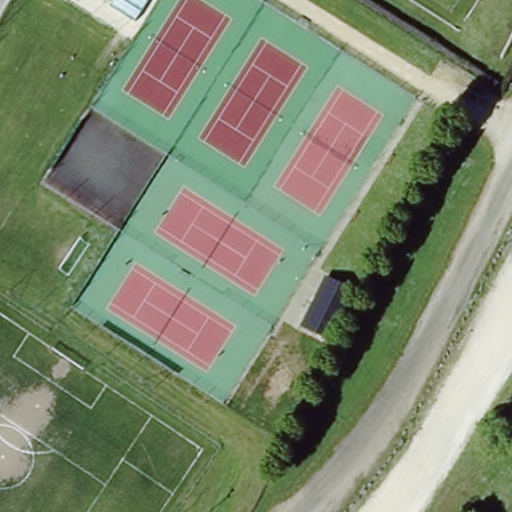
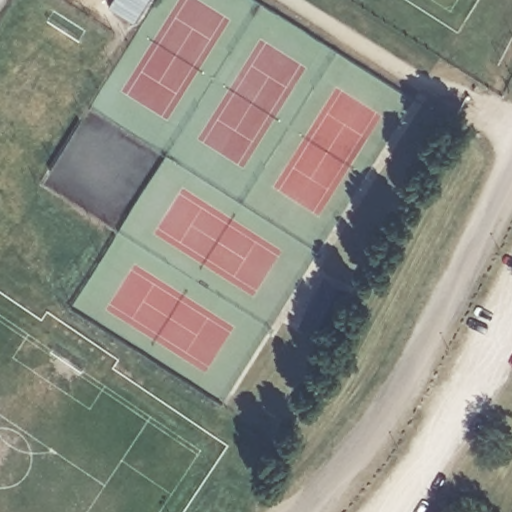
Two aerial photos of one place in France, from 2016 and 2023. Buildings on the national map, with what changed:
unchanged [(352,293),(327,341),(305,329),(330,282),(352,293)]

